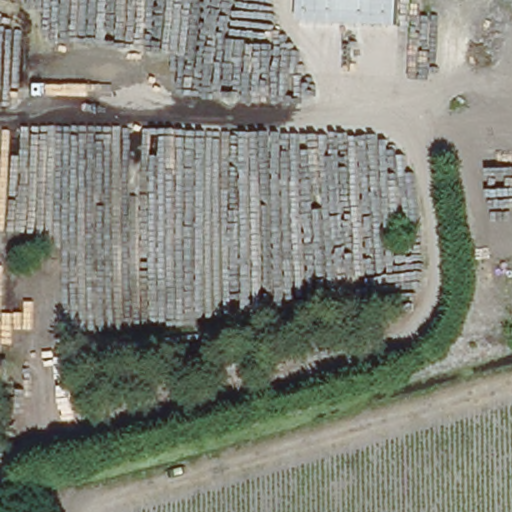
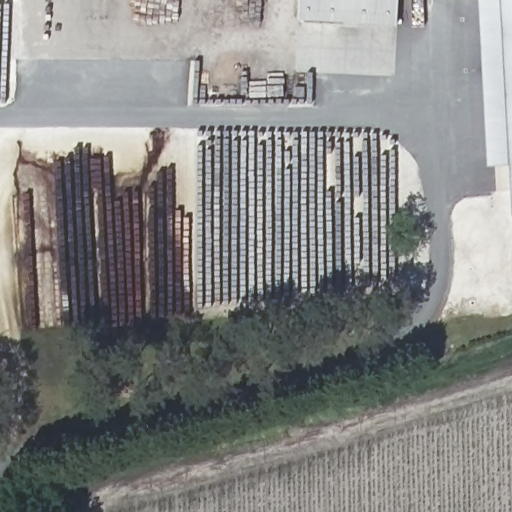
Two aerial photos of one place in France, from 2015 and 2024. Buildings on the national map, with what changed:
unchanged [(302,0),(402,0),(400,25),(302,22),(302,0)]
new [(489,168),(481,0),(512,0),(512,169),(489,168)]

